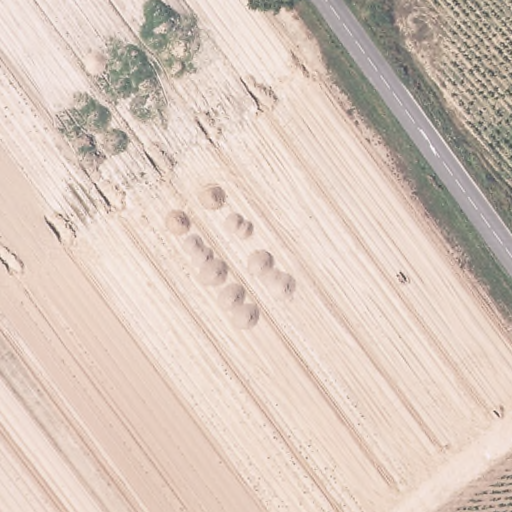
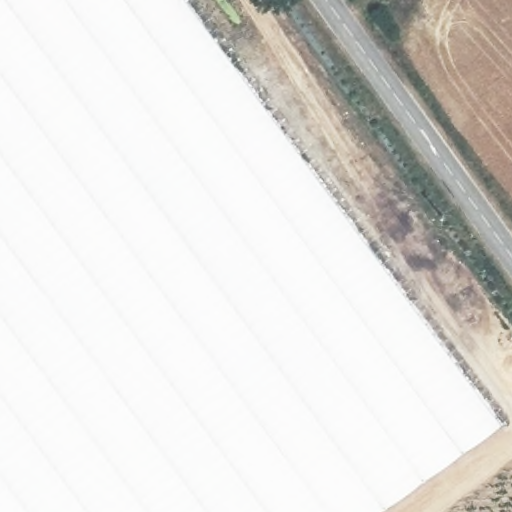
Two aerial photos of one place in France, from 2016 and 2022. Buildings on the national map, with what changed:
new [(500,427),(382,512),(0,512),(0,0),(186,0),(500,427)]

